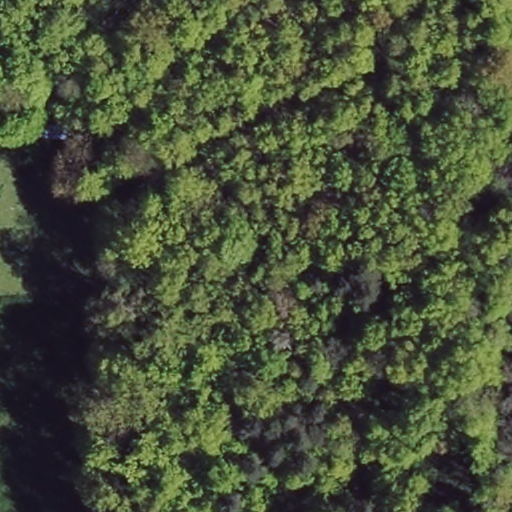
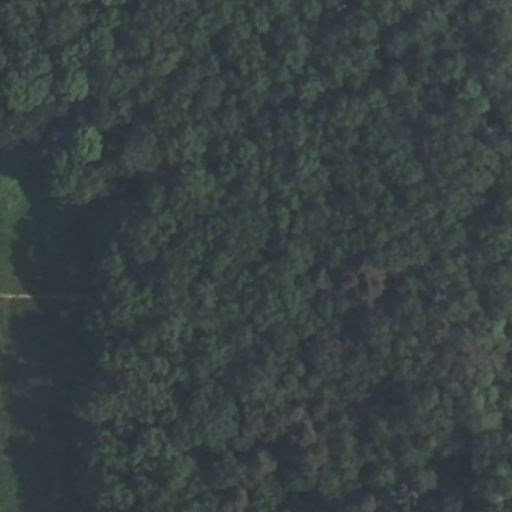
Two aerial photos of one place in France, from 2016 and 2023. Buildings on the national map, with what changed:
unchanged [(47,95),(66,95),(67,137),(44,136),(47,95)]

